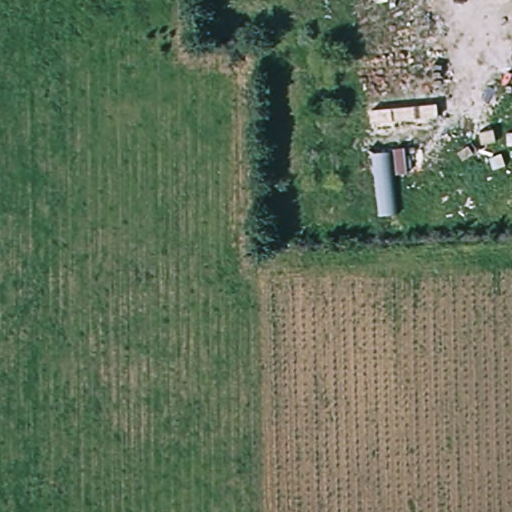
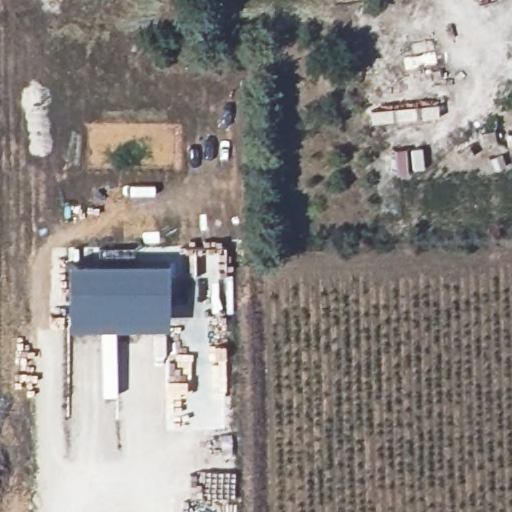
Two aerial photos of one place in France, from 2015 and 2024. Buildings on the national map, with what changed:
new [(166,258),(167,325),(68,326),(68,262),(166,258)]

